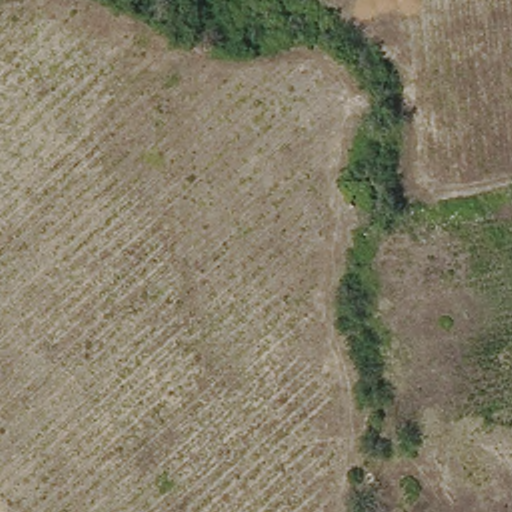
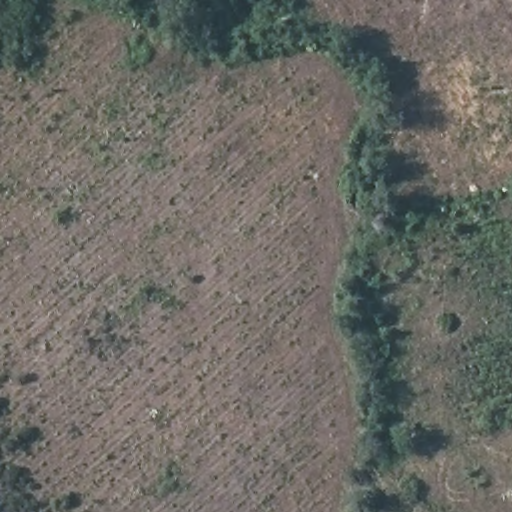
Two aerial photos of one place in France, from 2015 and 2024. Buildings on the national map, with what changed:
unchanged [(366,192),(367,215),(350,216),(349,193),(366,192)]

